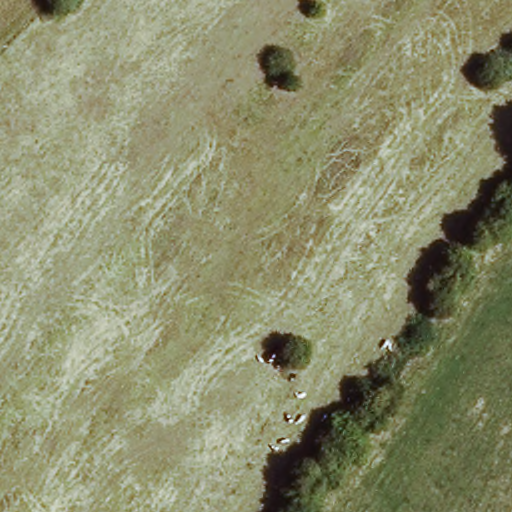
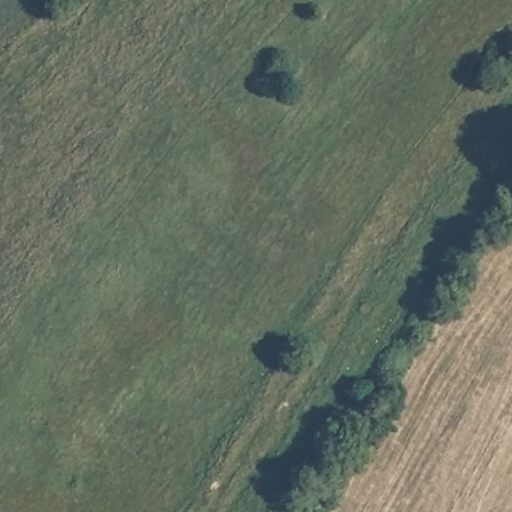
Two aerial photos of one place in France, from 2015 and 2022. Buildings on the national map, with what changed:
[]

